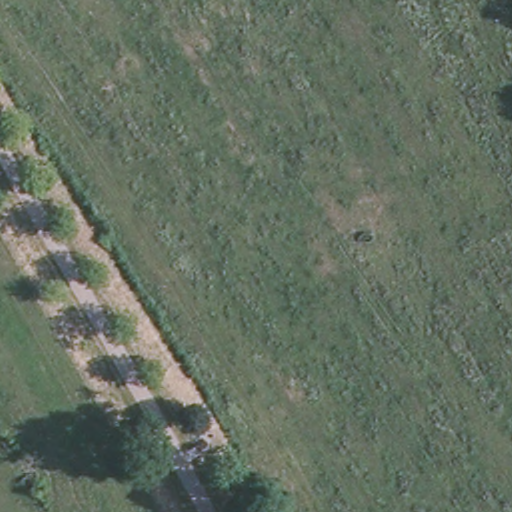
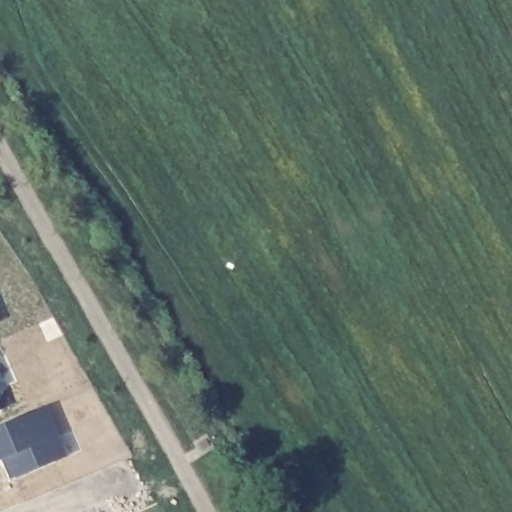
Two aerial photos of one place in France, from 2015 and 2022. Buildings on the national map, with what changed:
new [(56,438),(44,444),(54,464),(15,480),(10,466),(2,470),(0,466),(0,429),(45,410),(56,438)]

